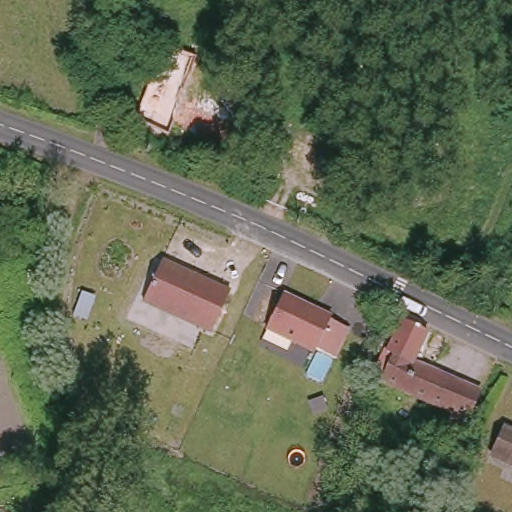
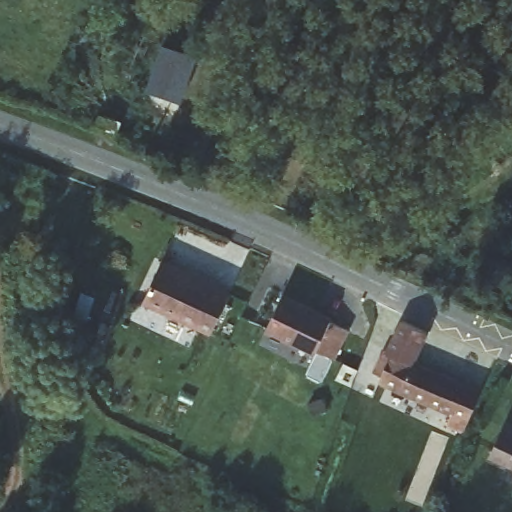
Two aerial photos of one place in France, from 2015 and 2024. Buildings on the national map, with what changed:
new [(162,42),(198,55),(181,102),(145,89),(162,42)]
unchanged [(228,288),(211,331),(142,303),(159,260),(228,288)]
unchanged [(307,342),(258,321),(273,287),(322,308),(321,310),(342,320),(330,349),(308,339),(307,342)]
unchanged [(390,368),(386,363),(405,322),(430,334),(417,362),(482,393),(465,432),(450,425),(455,416),(383,384),(390,368)]
unchanged [(502,429),(512,434),(512,466),(490,455),(502,429)]

